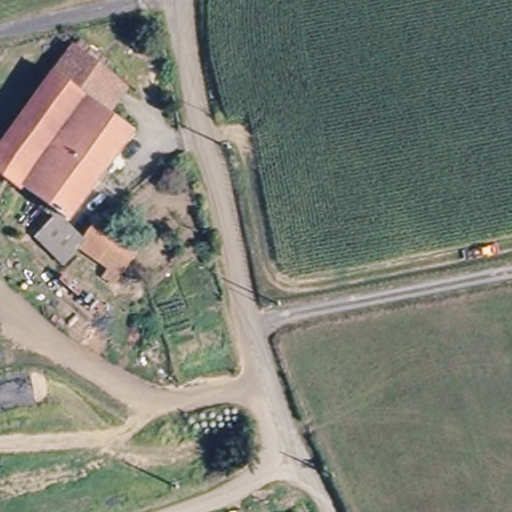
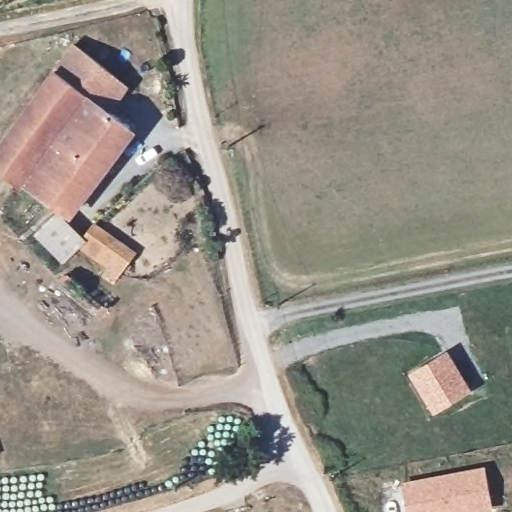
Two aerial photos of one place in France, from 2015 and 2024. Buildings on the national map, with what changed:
unchanged [(57,36),(123,79),(104,108),(39,62),(57,36)]
unchanged [(39,62),(104,108),(120,119),(61,212),(42,199),(0,171),(0,123),(39,62)]
unchanged [(97,262),(73,246),(63,258),(33,240),(42,226),(52,211),(82,230),(90,223),(101,215),(138,240),(133,251),(116,274),(97,262)]
new [(433,415),(408,374),(448,350),(472,391),(433,415)]
new [(407,512),(401,482),(485,466),(493,510),(482,512),(407,512)]

